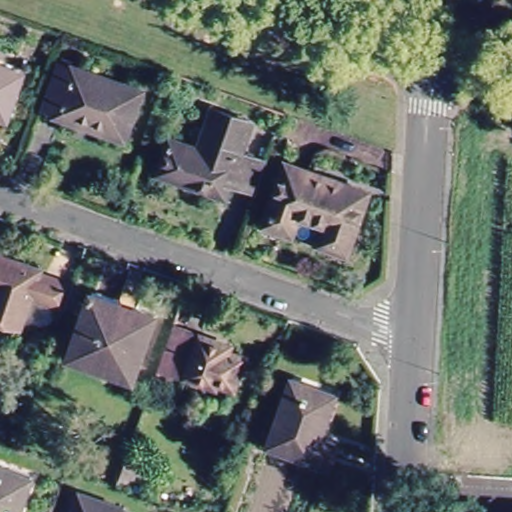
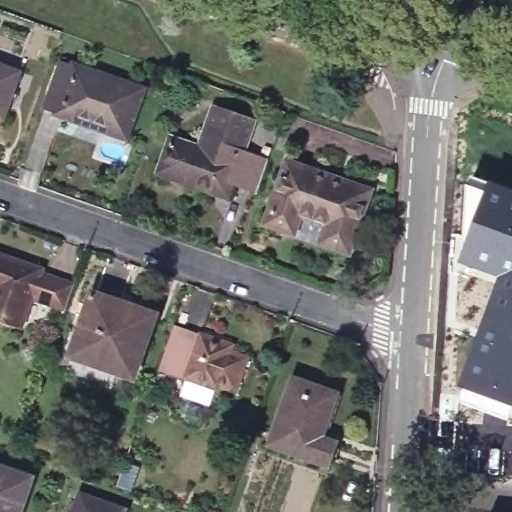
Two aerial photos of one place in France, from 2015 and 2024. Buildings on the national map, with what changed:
unchanged [(1,112),(0,114),(0,60),(18,66),(1,112)]
unchanged [(59,66),(138,95),(122,139),(43,110),(59,66)]
unchanged [(213,190),(194,184),(192,189),(158,177),(173,136),(200,146),(214,109),(253,123),(243,150),(267,160),(256,192),(230,183),(225,195),(213,190)]
unchanged [(286,154),(363,184),(342,240),(319,232),(324,216),(294,205),(288,222),(264,212),(286,154)]
new [(480,329),(497,279),(460,264),(471,224),(466,223),(467,200),(473,177),(512,188),(512,413),(510,419),(458,401),(461,388),(480,329)]
unchanged [(0,323),(0,257),(41,271),(41,274),(75,287),(66,312),(31,300),(21,330),(0,323)]
unchanged [(73,347),(94,291),(156,315),(133,378),(111,369),(71,354),(73,347)]
unchanged [(183,379),(159,369),(174,324),(220,340),(230,344),(228,351),(244,357),(233,391),(215,384),(213,389),(183,379)]
unchanged [(336,396),(341,397),(325,440),(336,444),(329,464),(270,443),(293,380),(336,396)]
unchanged [(18,512),(0,512),(0,464),(31,475),(18,512)]
unchanged [(139,468),(130,493),(118,488),(126,464),(139,468)]
unchanged [(68,476),(78,479),(73,492),(64,488),(68,476)]
unchanged [(79,496),(124,512),(73,512),(79,496)]

